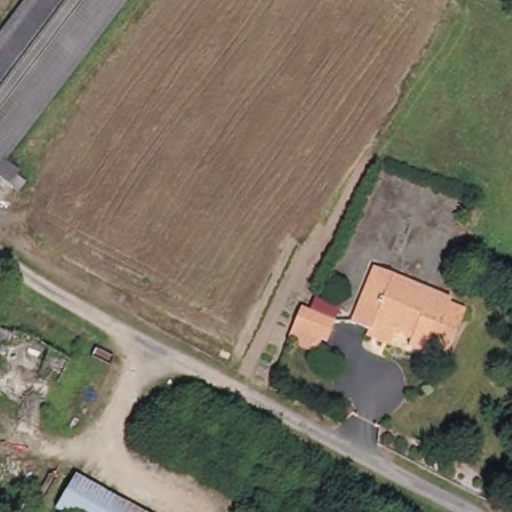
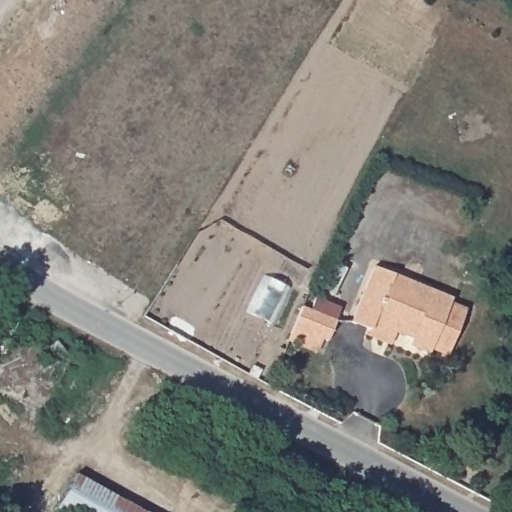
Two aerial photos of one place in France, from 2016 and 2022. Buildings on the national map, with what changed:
demolished [(20,195),(0,180),(0,65),(49,0),(143,0),(16,168),(31,180),(20,195)]
unchanged [(447,354),(431,347),(429,352),(409,345),(411,336),(375,322),(371,330),(353,321),(376,264),(452,296),(450,301),(466,307),(447,354)]
unchanged [(295,331),(305,312),(337,327),(328,347),(295,331)]
unchanged [(66,500),(77,505),(89,484),(139,512),(62,512),(60,511),(66,500)]

